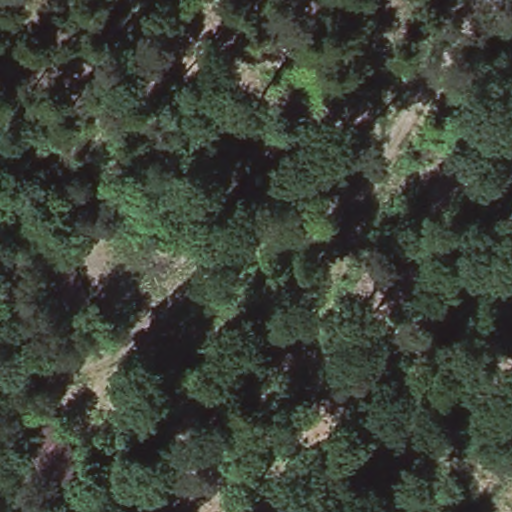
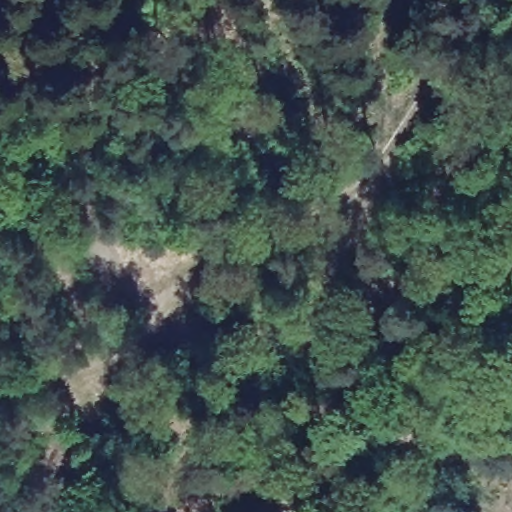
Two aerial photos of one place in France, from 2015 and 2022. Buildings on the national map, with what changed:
unchanged [(58,230),(102,322),(67,342),(26,245),(58,230)]
unchanged [(90,492),(52,506),(10,411),(48,393),(90,492)]

